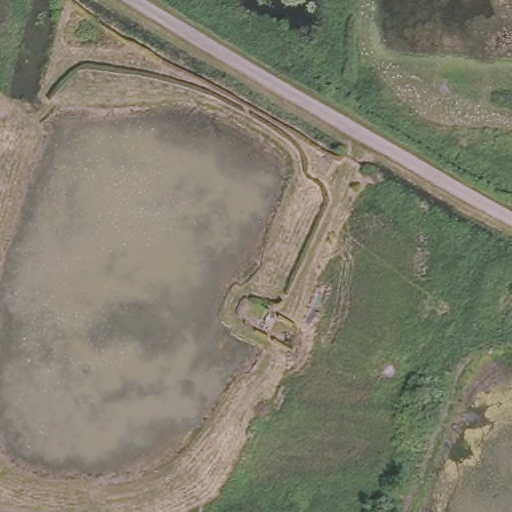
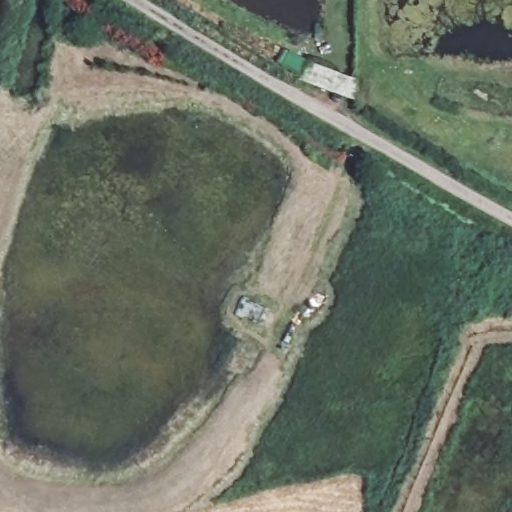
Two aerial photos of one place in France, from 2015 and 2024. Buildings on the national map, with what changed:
unchanged [(262,325),(239,313),(250,293),(271,305),(262,325)]

